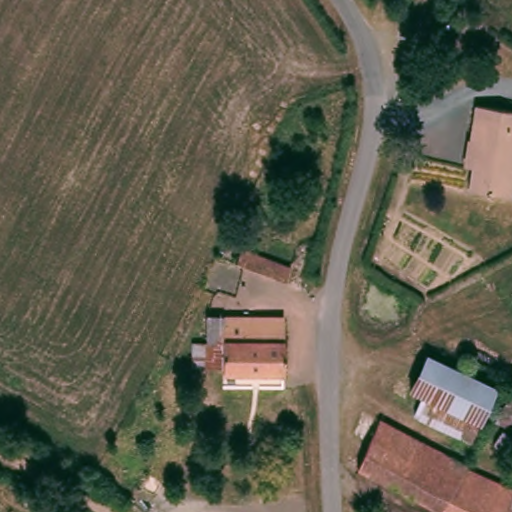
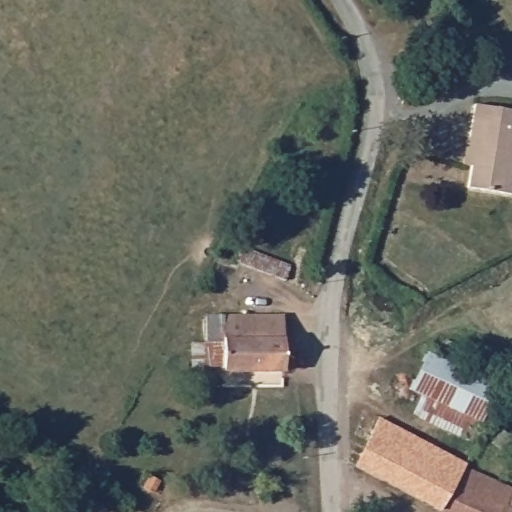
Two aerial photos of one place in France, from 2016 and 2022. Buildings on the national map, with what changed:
unchanged [(512,110),(512,193),(467,184),(471,164),(460,162),(464,140),(470,142),(478,104),(512,110)]
unchanged [(256,238),(309,259),(302,277),(248,255),(256,238)]
unchanged [(219,386),(219,372),(220,316),(281,319),(280,374),(242,372),(241,388),(219,386)]
unchanged [(427,396),(407,391),(425,353),(512,395),(512,432),(482,417),(471,443),(418,414),(427,396)]
unchanged [(470,457),(467,464),(444,507),(362,463),(385,416),(470,457)]
unchanged [(512,489),(508,498),(512,500),(512,512),(454,512),(444,507),(467,464),(512,486),(512,489)]

